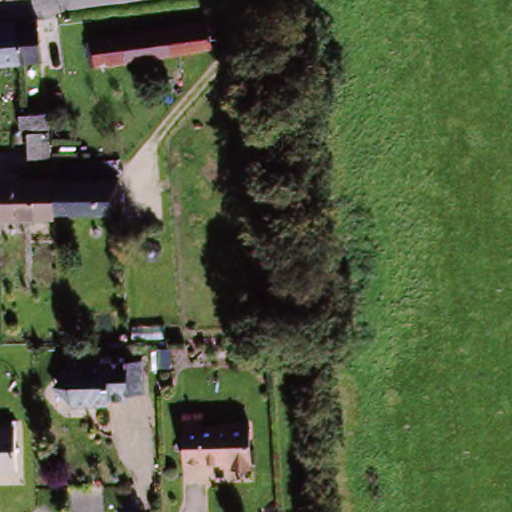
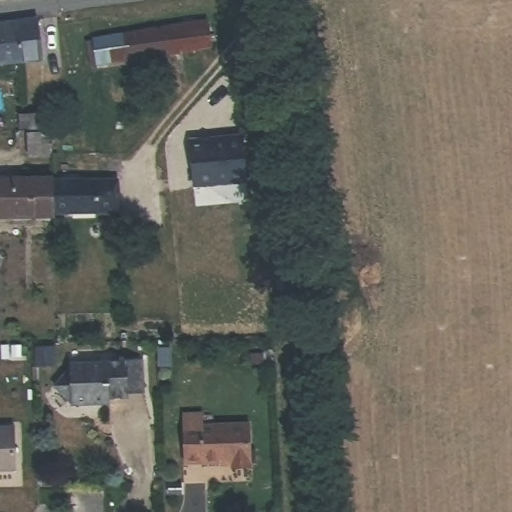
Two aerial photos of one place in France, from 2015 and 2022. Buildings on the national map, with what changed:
unchanged [(17,25),(44,22),(47,60),(20,65),(17,25)]
unchanged [(213,23),(216,54),(99,69),(93,38),(213,23)]
unchanged [(0,67),(0,27),(17,25),(20,65),(0,67)]
unchanged [(50,129),(22,129),(20,119),(50,118),(50,129)]
new [(246,135),(251,180),(193,188),(187,137),(246,135)]
unchanged [(52,168),(37,168),(36,136),(51,136),(52,168)]
unchanged [(52,184),(52,221),(52,225),(3,225),(2,181),(52,179),(52,184)]
unchanged [(106,226),(106,219),(52,221),(52,184),(116,181),(118,219),(118,225),(106,226)]
demolished [(338,241),(338,222),(368,217),(366,239),(338,241)]
unchanged [(149,230),(156,242),(150,255),(136,255),(128,244),(135,231),(149,230)]
unchanged [(93,403),(93,397),(73,389),(83,370),(83,367),(101,366),(100,360),(111,360),(112,365),(126,365),(143,364),(144,395),(128,396),(128,401),(93,403)]
unchanged [(189,416),(206,416),(207,428),(252,425),(254,466),(237,467),(237,463),(192,466),(189,416)]
unchanged [(16,432),(17,472),(0,473),(0,433),(16,432)]

